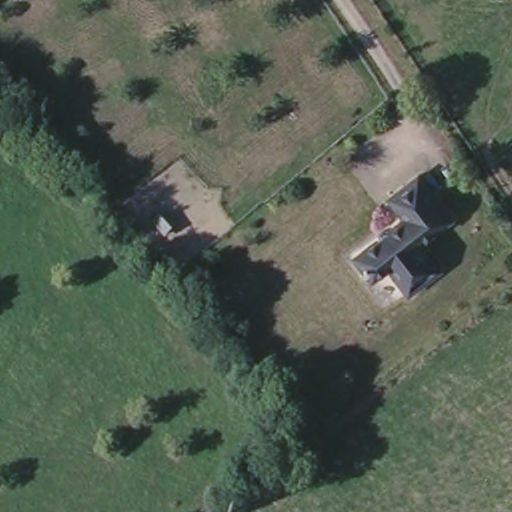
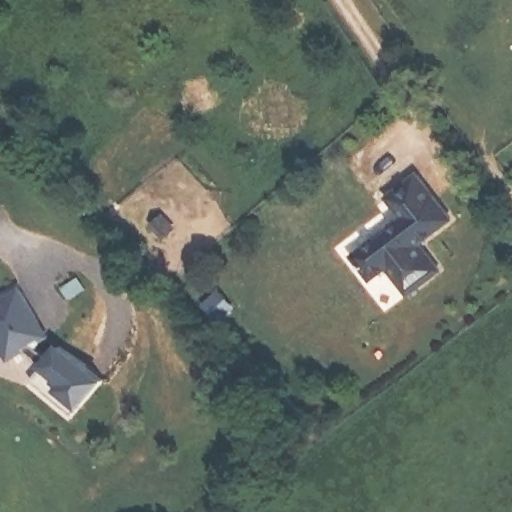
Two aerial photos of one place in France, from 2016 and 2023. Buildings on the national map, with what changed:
unchanged [(380,234),(380,233),(381,233),(381,232),(381,231),(381,230),(382,230),(382,229),(383,228),(384,228),(384,227),(385,227),(386,226),(387,226),(388,226),(389,226),(390,226),(396,221),(398,223),(408,215),(390,193),(419,170),(454,212),(422,238),(443,264),(414,287),(392,262),(377,274),(358,251),(380,234)]
new [(48,333),(42,336),(58,353),(66,346),(109,381),(74,418),(29,374),(45,363),(27,342),(9,353),(0,335),(0,294),(20,280),(48,333)]

